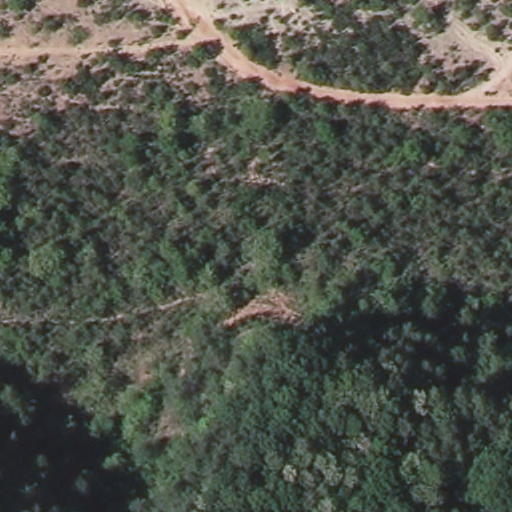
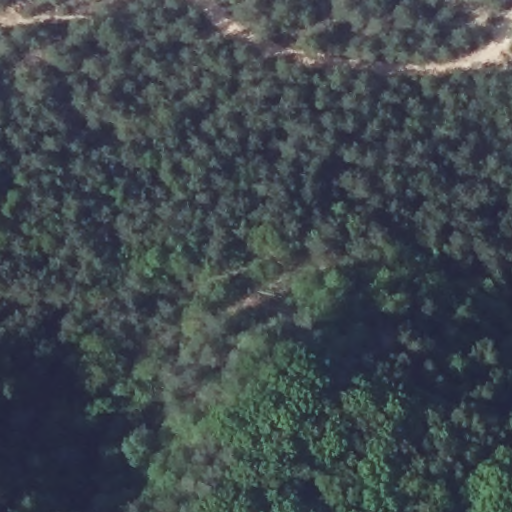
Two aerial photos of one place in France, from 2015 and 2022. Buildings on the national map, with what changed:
[]

